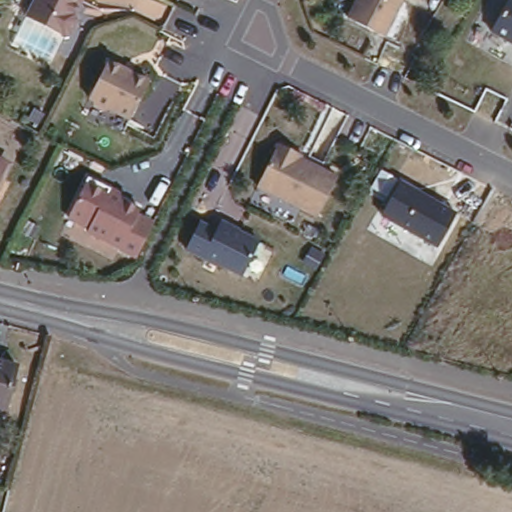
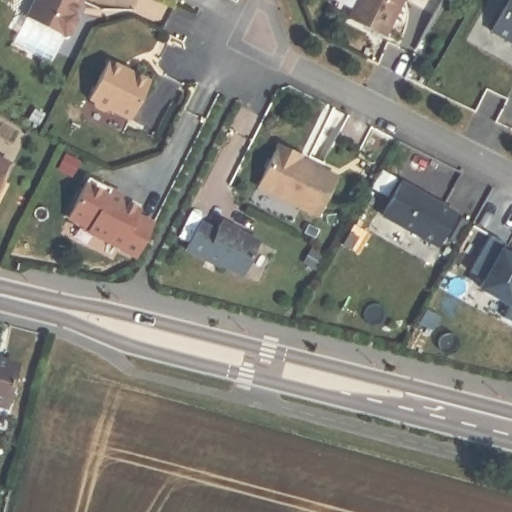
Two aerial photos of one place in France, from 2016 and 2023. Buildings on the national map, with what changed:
unchanged [(82,15),(72,35),(27,13),(33,0),(87,0),(80,14),(82,15)]
unchanged [(347,13),(354,0),(408,0),(389,35),(347,13)]
unchanged [(506,0),(512,0),(512,40),(491,28),(506,0)]
unchanged [(155,78),(132,119),(88,98),(110,54),(155,78)]
unchanged [(342,170),(320,217),(256,185),(282,137),(342,170)]
unchanged [(5,159),(0,169),(0,157),(5,159)]
unchanged [(390,198),(371,186),(382,168),(458,213),(437,248),(380,215),(390,198)]
unchanged [(130,192),(127,198),(141,206),(139,210),(156,219),(137,258),(89,230),(91,226),(71,215),(94,171),(130,192)]
unchanged [(264,235),(243,275),(187,246),(202,217),(219,226),(225,214),(264,235)]
new [(505,243),(502,249),(512,255),(512,322),(502,316),(510,304),(480,287),(484,279),(469,271),(490,234),(505,243)]
unchanged [(20,358),(6,399),(0,398),(0,353),(20,358)]

